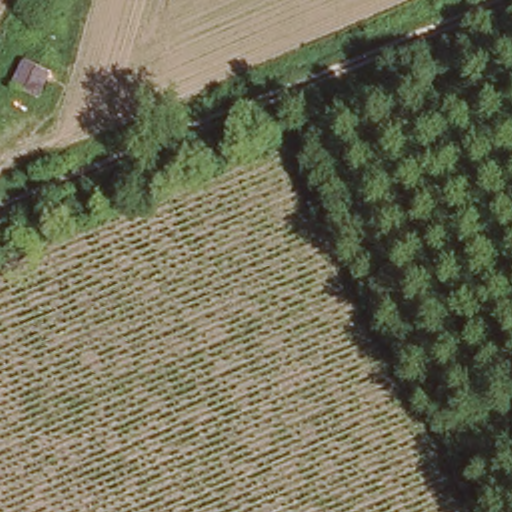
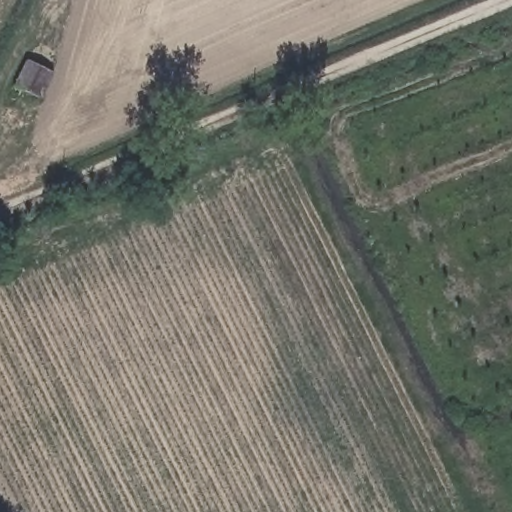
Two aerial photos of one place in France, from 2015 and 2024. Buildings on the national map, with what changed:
unchanged [(24,56),(51,70),(36,96),(11,84),(24,56)]

